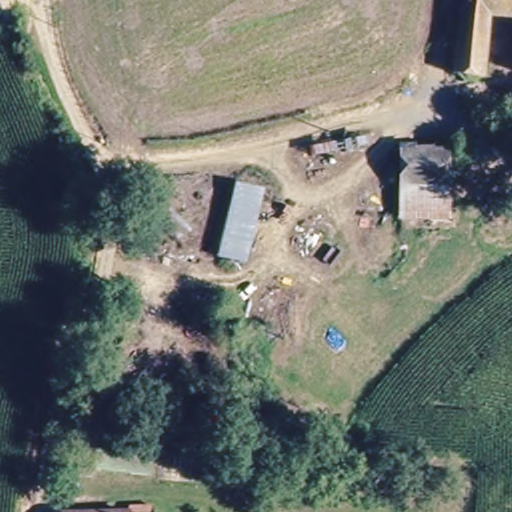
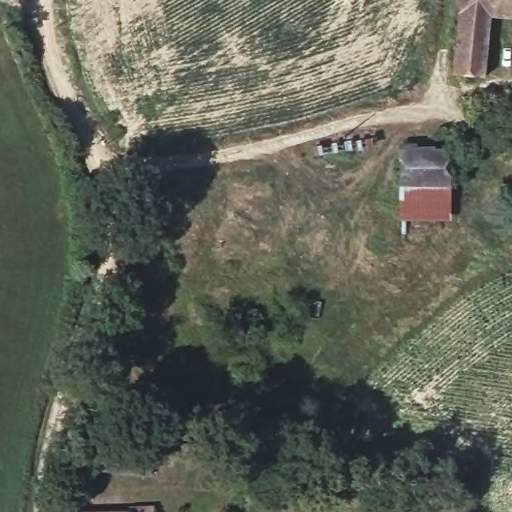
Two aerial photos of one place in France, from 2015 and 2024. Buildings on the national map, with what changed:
unchanged [(485,74),(454,69),(463,0),(512,0),(512,17),(494,14),(485,74)]
unchanged [(451,151),(450,188),(401,190),(402,151),(451,151)]
demolished [(213,255),(231,181),(266,187),(245,262),(213,255)]
unchanged [(450,188),(449,216),(401,216),(401,190),(450,188)]

